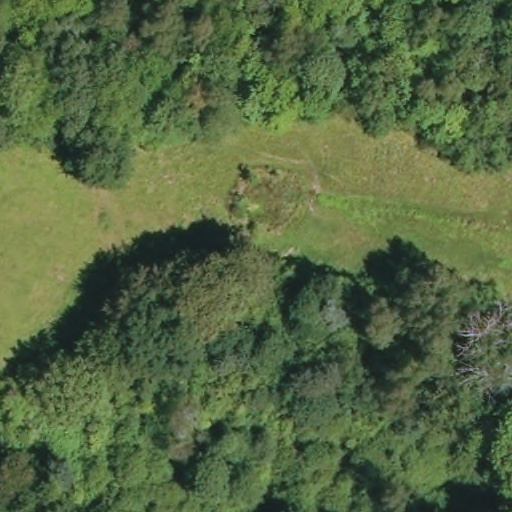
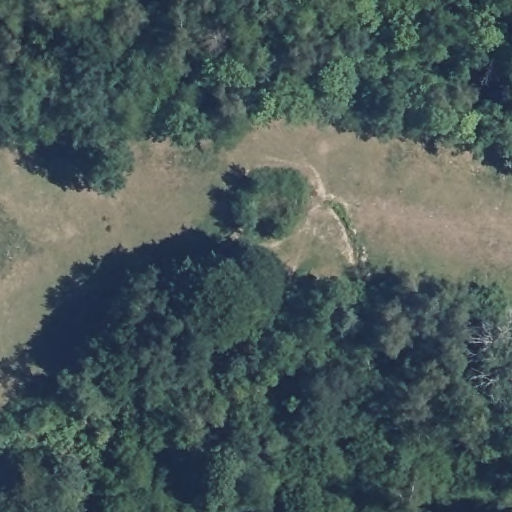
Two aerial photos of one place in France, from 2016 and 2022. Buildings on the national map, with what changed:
[]

